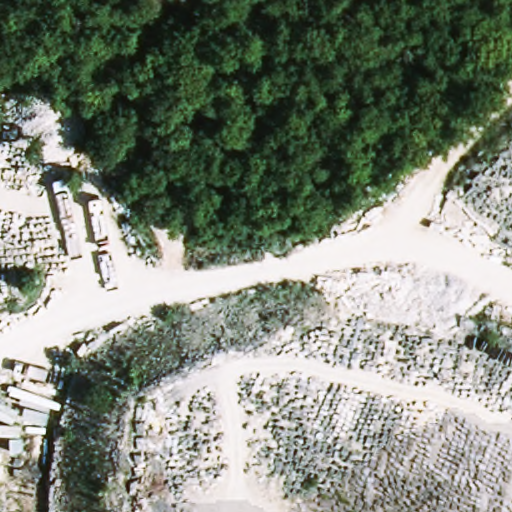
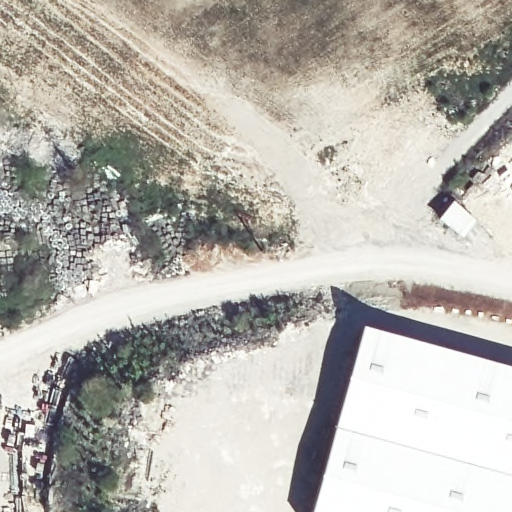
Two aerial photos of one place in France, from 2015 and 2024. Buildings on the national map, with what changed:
new [(363,329),(512,371),(512,512),(313,512),(363,329)]

